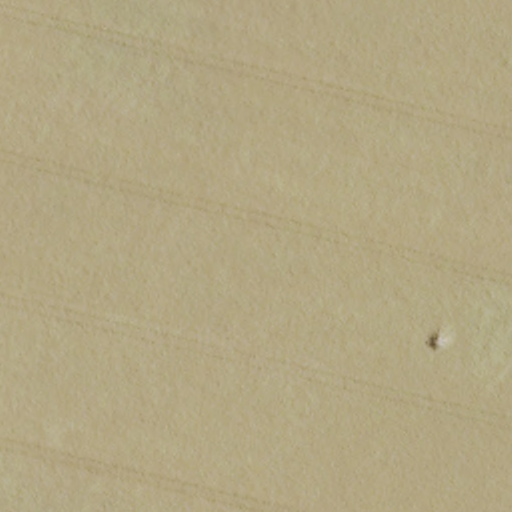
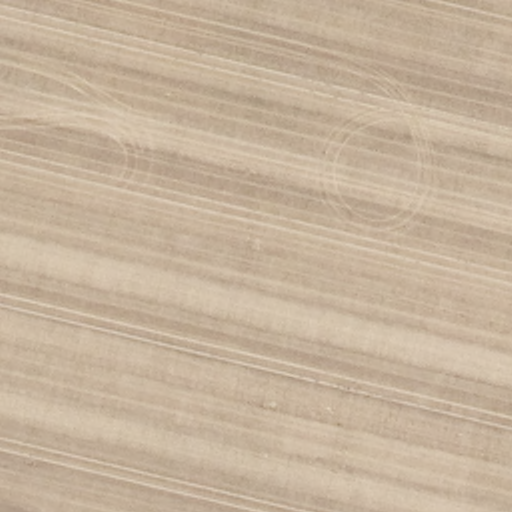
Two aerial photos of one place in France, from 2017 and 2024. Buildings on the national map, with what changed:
[]

